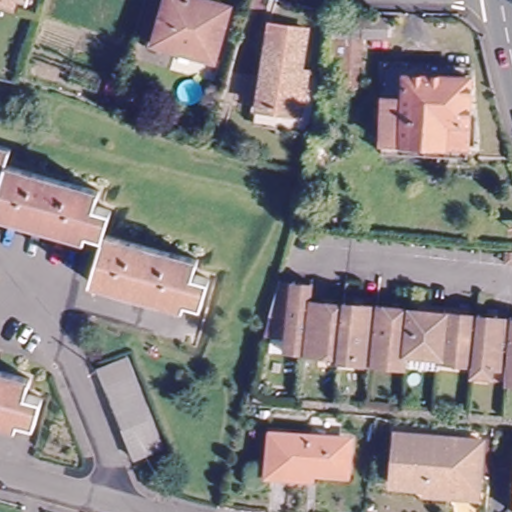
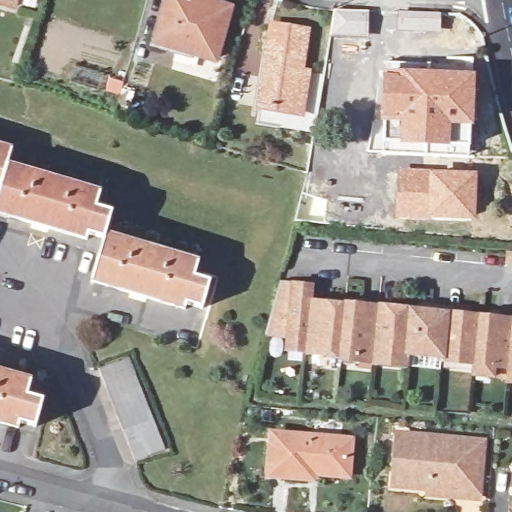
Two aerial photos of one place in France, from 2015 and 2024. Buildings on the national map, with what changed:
unchanged [(0,5),(0,0),(14,0),(11,9),(0,5)]
unchanged [(182,0),(226,13),(212,61),(156,45),(169,0),(182,0)]
unchanged [(330,21),(384,20),(384,39),(358,39),(358,65),(353,65),(354,90),(332,90),(330,21)]
unchanged [(270,32),(306,37),(295,112),(277,110),(276,116),(258,114),(270,32)]
unchanged [(373,105),(385,105),(387,59),(408,60),(470,61),(470,71),(468,141),(385,139),(385,121),(373,121),(373,105)]
unchanged [(468,154),(384,152),(385,139),(468,141),(468,154)]
unchanged [(9,154),(4,170),(96,199),(92,212),(109,217),(102,239),(193,268),(188,283),(203,288),(195,314),(180,309),(177,317),(86,288),(98,250),(82,245),(81,250),(0,225),(0,151),(9,154)]
new [(396,168),(477,171),(475,220),(394,217),(396,168)]
unchanged [(311,293),(309,308),(361,314),(361,309),(429,315),(430,311),(460,314),(460,318),(512,324),(512,385),(500,384),(501,375),(466,372),(466,367),(404,360),(404,365),(370,362),(370,366),(280,357),(282,343),(263,341),(276,290),(311,293)]
unchanged [(98,371),(125,360),(161,448),(134,460),(98,371)]
unchanged [(29,385),(25,398),(41,403),(33,430),(17,425),(15,432),(0,428),(0,376),(29,385)]
unchanged [(275,436),(349,442),(347,474),(315,471),(314,478),(272,475),(275,436)]
unchanged [(474,500),(424,496),(424,491),(390,488),(395,438),(479,445),(474,500)]

